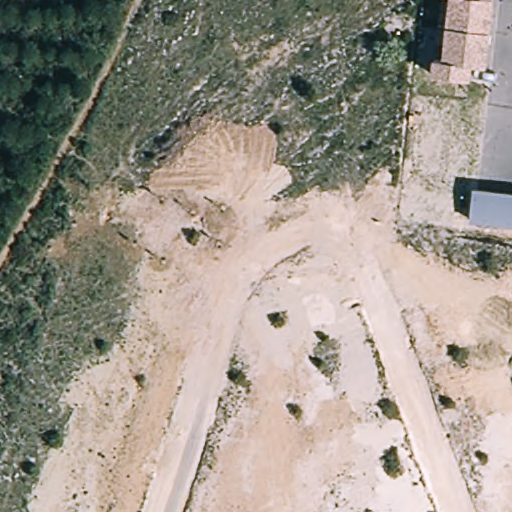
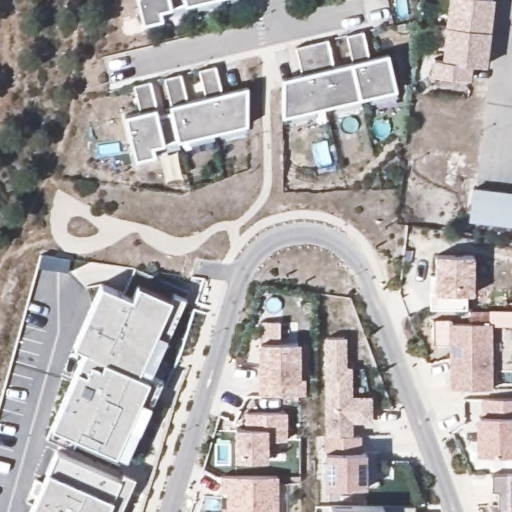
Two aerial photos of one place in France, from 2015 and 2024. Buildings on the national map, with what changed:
new [(158,11),(160,19),(142,23),(136,0),(207,0),(158,11)]
unchanged [(489,32),(449,27),(452,0),(493,0),(489,32)]
unchanged [(484,66),(469,64),(468,79),(431,75),(433,59),(445,60),(449,27),(489,32),(484,66)]
new [(283,79),(302,74),(296,47),(326,40),(333,65),(352,61),(346,36),(361,32),(368,57),(387,53),(395,89),(282,116),(283,79)]
new [(245,124),(151,146),(152,155),(133,160),(123,115),(139,111),(133,85),(148,81),(154,108),(157,115),(170,112),(168,105),(163,79),(179,75),(186,100),(205,96),(198,71),(213,67),(222,92),(246,87),(245,124)]
unchanged [(512,224),(469,219),(472,189),(512,194),(512,224)]
new [(435,294),(434,256),(472,256),(472,294),(465,295),(465,310),(430,310),(429,294),(435,294)]
new [(52,428),(76,370),(85,352),(73,347),(101,286),(130,299),(137,286),(169,300),(173,294),(184,299),(165,339),(150,374),(160,379),(150,406),(125,459),(113,454),(77,439),(72,450),(47,438),(52,428)]
new [(449,324),(491,324),(491,388),(449,388),(449,324)]
new [(341,338),(342,369),(347,369),(347,398),(367,398),(367,421),(348,421),(347,436),(324,437),(324,339),(341,338)]
new [(258,381),(257,343),(300,342),(299,379),(305,379),(304,396),(258,395),(258,381)]
new [(476,417),(482,417),(482,399),(512,399),(512,454),(475,453),(476,417)]
new [(287,413),(286,440),(268,441),(267,462),(232,464),(232,429),(243,428),(243,412),(287,413)]
new [(365,453),(378,453),(377,487),(366,486),(324,487),(325,453),(326,437),(360,436),(365,453)]
new [(29,492),(36,478),(42,481),(47,471),(57,451),(119,480),(123,474),(133,478),(119,512),(29,512),(37,496),(29,492)]
new [(512,473),(512,512),(503,512),(503,510),(494,510),(494,491),(487,491),(487,473),(512,473)]
new [(274,512),(224,512),(224,494),(218,494),(218,478),(274,477),(274,512)]
new [(328,512),(328,506),(349,507),(412,506),(412,512),(328,512)]

